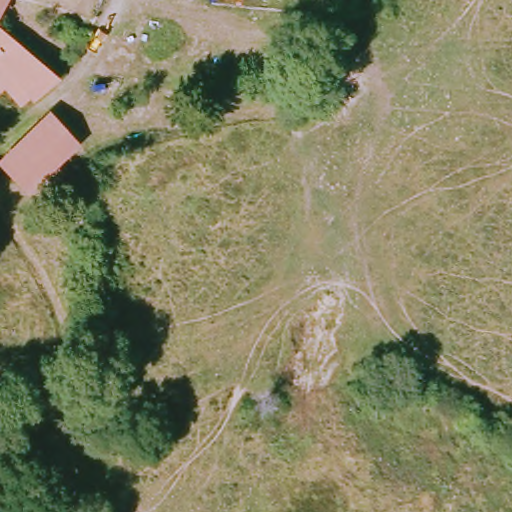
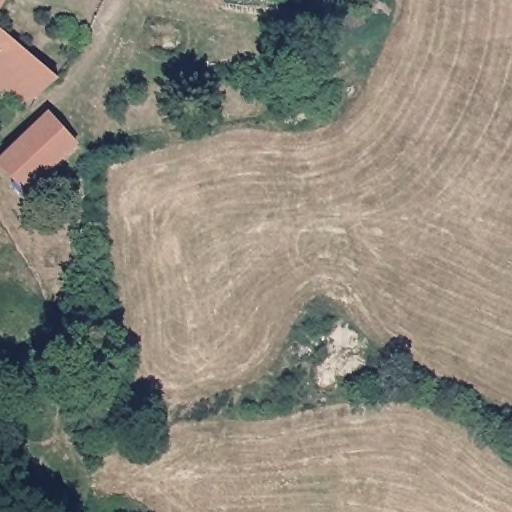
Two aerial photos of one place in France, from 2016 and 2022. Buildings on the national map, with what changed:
unchanged [(0,0),(3,0),(0,5),(0,0)]
unchanged [(39,99),(32,92),(21,103),(0,80),(0,28),(55,74),(39,99)]
unchanged [(0,165),(0,159),(48,112),(75,139),(71,144),(25,192),(0,165)]

